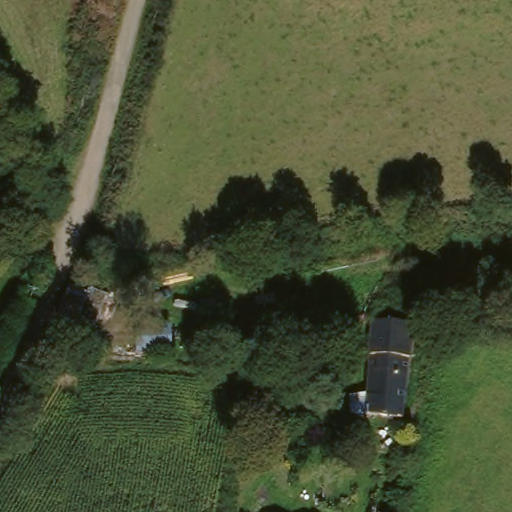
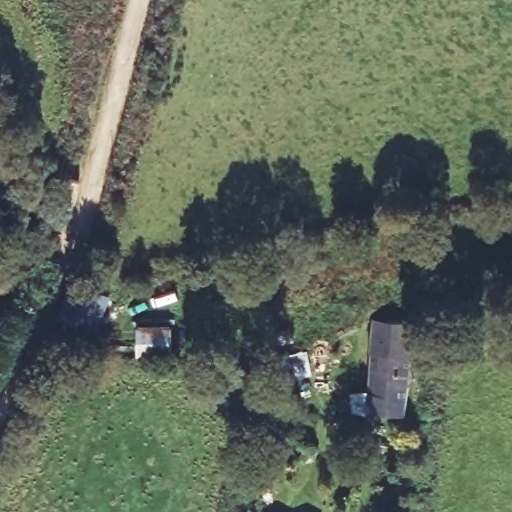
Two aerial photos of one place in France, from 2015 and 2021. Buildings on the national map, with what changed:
unchanged [(98,300),(88,322),(78,320),(73,330),(52,321),(66,288),(98,300)]
unchanged [(417,416),(374,413),(376,390),(384,390),(387,352),(379,351),(383,318),(426,321),(417,416)]
unchanged [(138,321),(171,325),(168,353),(136,351),(138,321)]
unchanged [(3,355),(0,362),(0,353),(3,355)]

